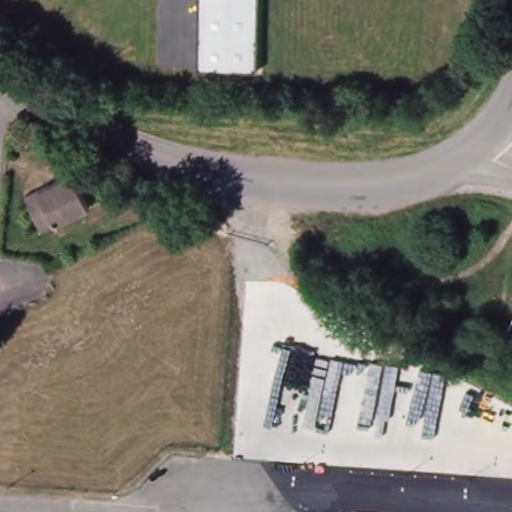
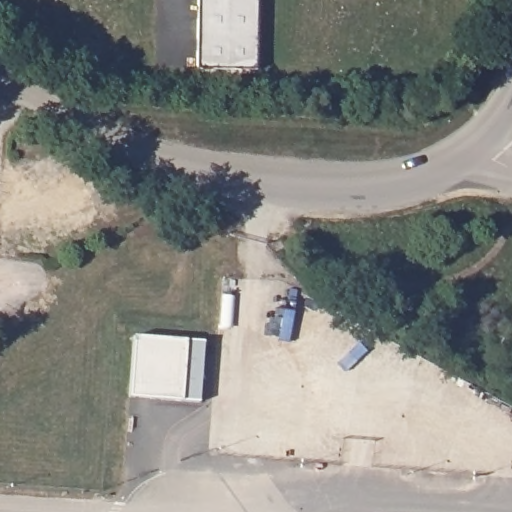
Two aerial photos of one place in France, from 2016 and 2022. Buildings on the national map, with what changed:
unchanged [(200,0),(256,0),(256,68),(199,66),(200,0)]
unchanged [(73,173),(88,207),(41,229),(25,196),(73,173)]
new [(134,337),(187,340),(182,402),(130,398),(134,337)]
new [(187,340),(204,342),(200,403),(182,402),(187,340)]

